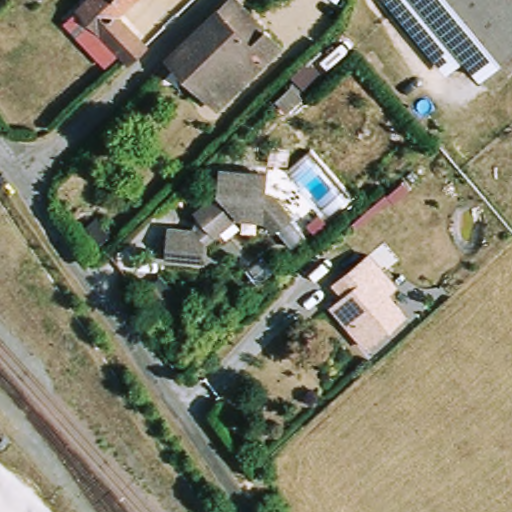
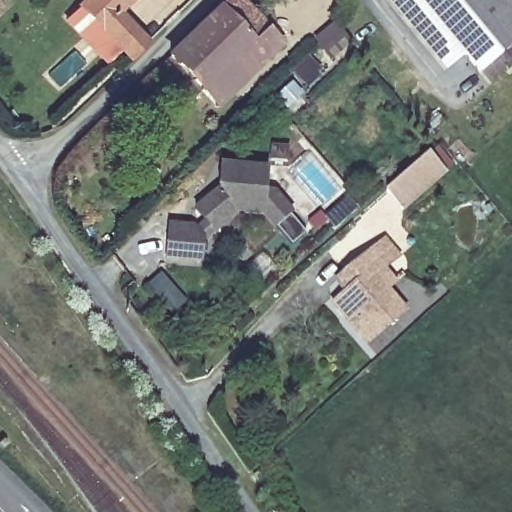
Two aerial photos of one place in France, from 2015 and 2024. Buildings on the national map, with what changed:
unchanged [(127,17),(153,47),(133,66),(77,3),(81,0),(146,0),(127,17)]
unchanged [(194,11),(184,0),(206,0),(194,11)]
unchanged [(229,0),(239,0),(266,32),(249,48),(216,12),(229,0)]
unchanged [(268,1),(269,0),(296,0),(290,13),(268,1)]
unchanged [(470,61),(457,75),(384,1),(385,0),(407,0),(470,61)]
unchanged [(512,58),(491,80),(470,61),(407,0),(512,0),(512,58)]
unchanged [(168,55),(216,12),(249,48),(266,32),(284,52),(238,95),(221,111),(206,95),(168,55)]
unchanged [(301,112),(287,126),(277,115),(291,102),(301,112)]
new [(434,147),(449,166),(442,173),(401,210),(384,192),(426,154),(434,147)]
unchanged [(192,245),(194,248),(203,240),(193,227),(217,205),(220,183),(267,190),(264,212),(272,213),(291,233),(274,249),(261,234),(234,231),(201,259),(199,280),(161,274),(166,243),(192,245)]
unchanged [(391,288),(384,295),(403,318),(365,350),(329,307),(351,288),(342,279),(365,259),(391,288)]

